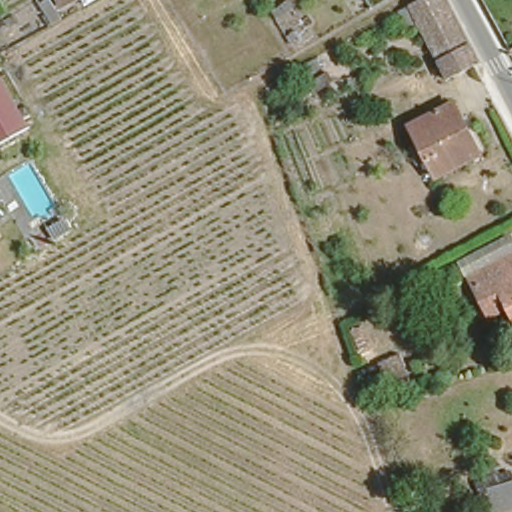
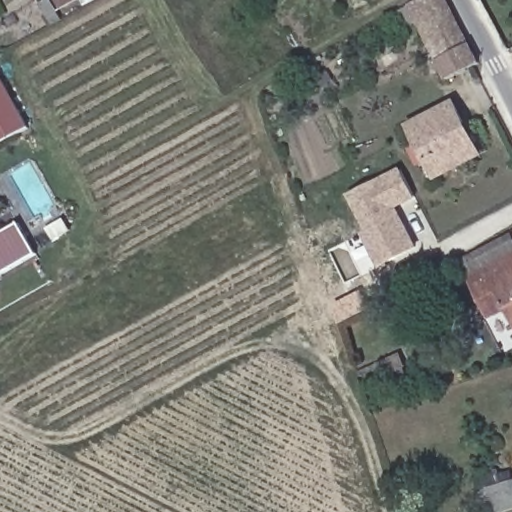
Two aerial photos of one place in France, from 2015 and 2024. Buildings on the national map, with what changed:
unchanged [(74,11),(64,17),(55,0),(68,0),(74,11)]
unchanged [(483,60),(477,63),(451,77),(410,3),(415,0),(449,0),(483,60)]
unchanged [(0,144),(0,69),(33,126),(0,144)]
unchanged [(476,152),(439,172),(423,140),(413,122),(456,99),(465,117),(468,121),(482,149),(476,152)]
new [(400,166),(415,195),(394,206),(416,248),(379,268),(361,235),(366,233),(346,195),(400,166)]
unchanged [(0,229),(1,231),(19,222),(38,255),(0,277),(0,229)]
unchanged [(482,261),(512,246),(512,318),(482,261)]
unchanged [(409,367),(387,376),(380,364),(404,354),(409,367)]
unchanged [(512,487),(512,500),(489,508),(483,490),(479,480),(506,471),(509,479),(512,487)]

